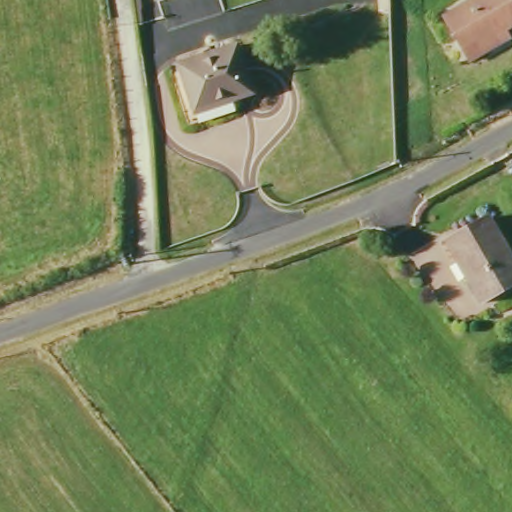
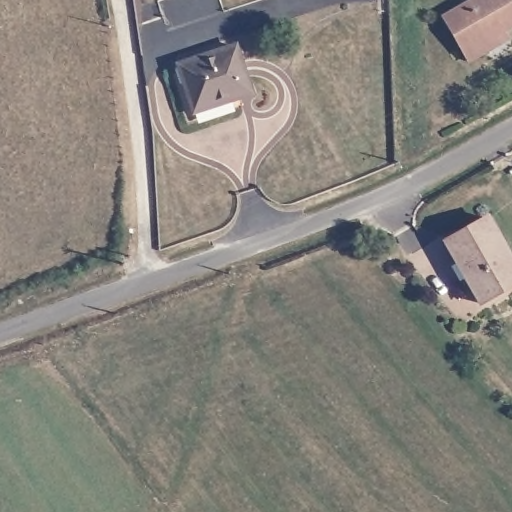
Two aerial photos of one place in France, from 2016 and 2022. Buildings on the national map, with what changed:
unchanged [(443,19),(475,0),(512,0),(512,29),(506,33),(510,41),(469,65),(443,19)]
unchanged [(238,46),(252,96),(194,116),(179,65),(238,46)]
unchanged [(512,258),(512,286),(481,305),(444,242),(487,215),(512,258)]

